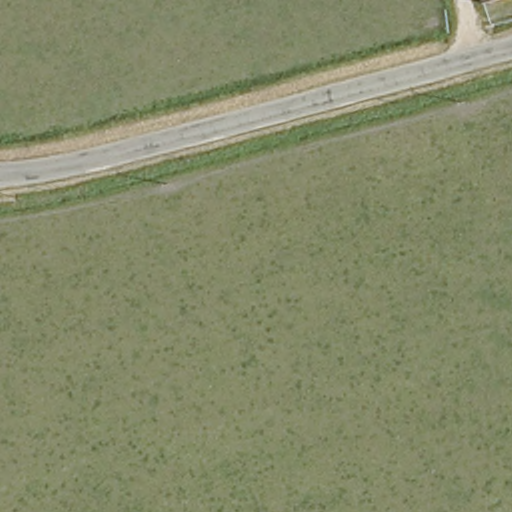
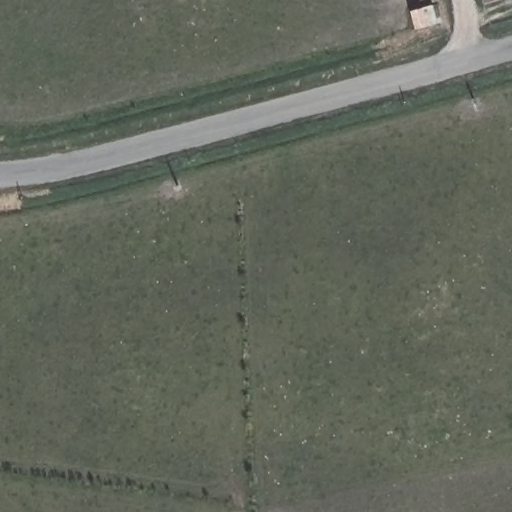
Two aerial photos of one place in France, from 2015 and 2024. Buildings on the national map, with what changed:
unchanged [(488,0),(498,0),(488,3),(488,0)]

